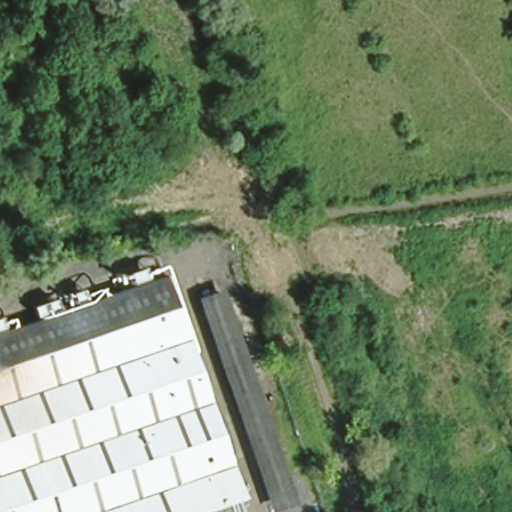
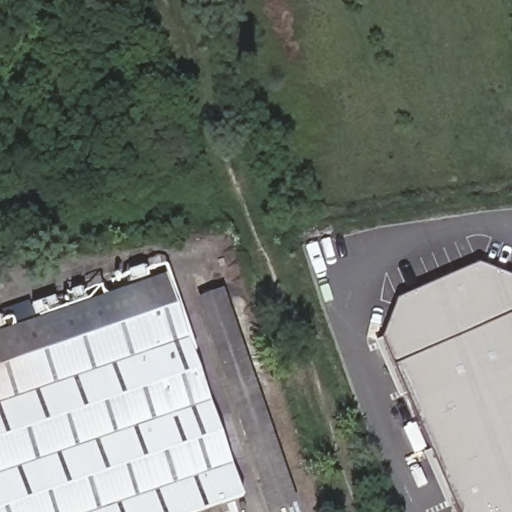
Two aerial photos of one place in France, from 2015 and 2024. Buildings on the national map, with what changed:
new [(480,258),(512,270),(512,512),(461,512),(383,334),(398,294),(480,258)]
unchanged [(182,512),(0,512),(0,319),(159,263),(240,492),(182,512)]
unchanged [(298,497),(273,506),(199,299),(224,290),(298,497)]

